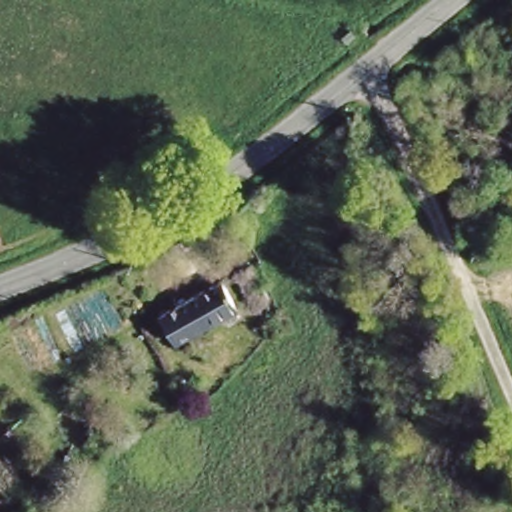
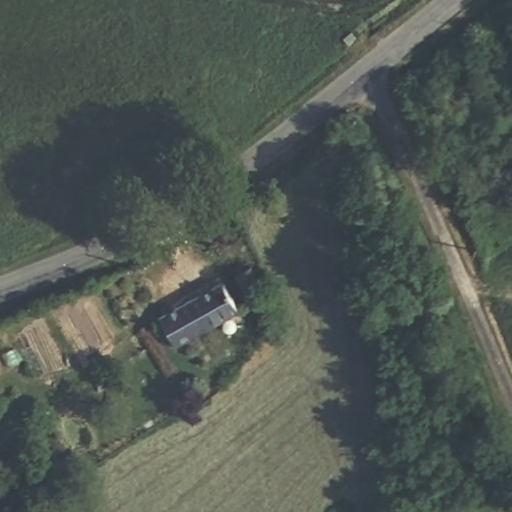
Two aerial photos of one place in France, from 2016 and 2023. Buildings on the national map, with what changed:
unchanged [(279,310),(262,315),(250,280),(267,274),(279,310)]
unchanged [(160,308),(232,285),(245,325),(172,348),(160,308)]

